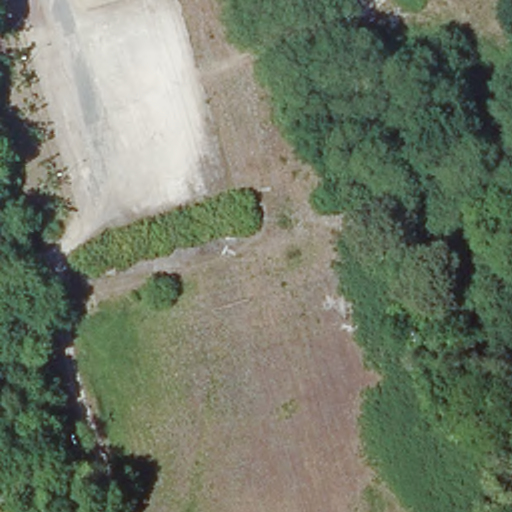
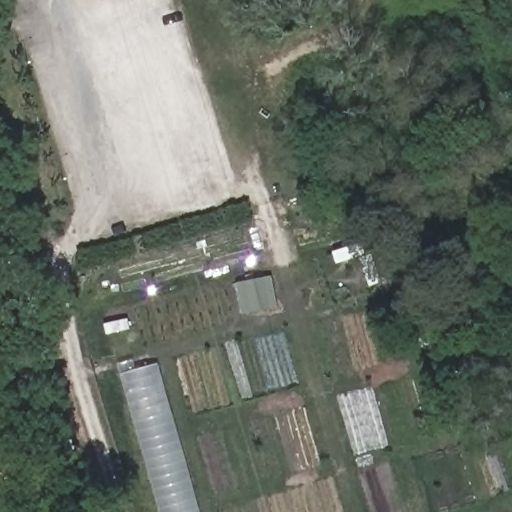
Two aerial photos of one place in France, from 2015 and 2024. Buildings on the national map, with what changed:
new [(158,364),(200,512),(160,512),(121,374),(158,364)]

